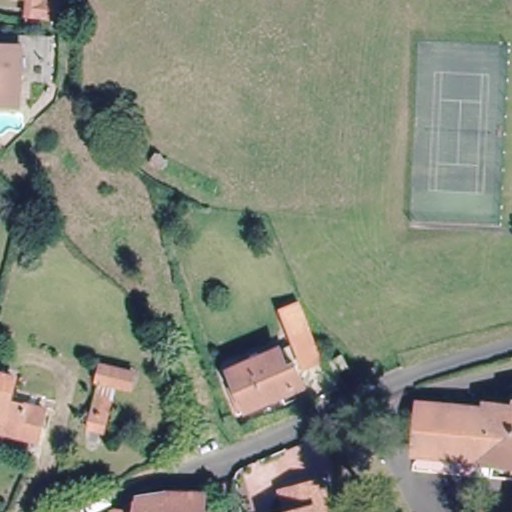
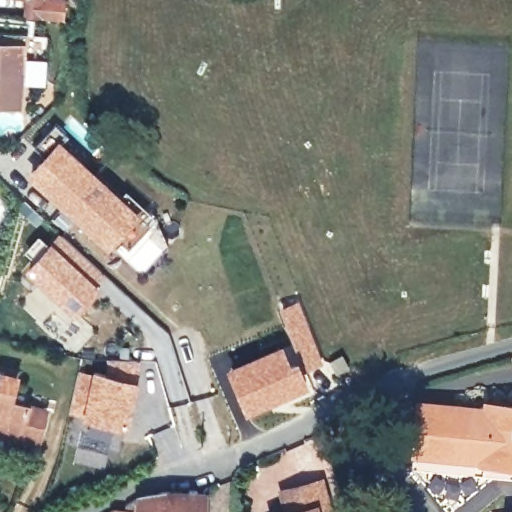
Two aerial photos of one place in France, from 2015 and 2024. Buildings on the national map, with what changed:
unchanged [(72,22),(34,20),(36,1),(7,0),(48,0),(47,1),(73,3),(72,22)]
unchanged [(0,105),(0,45),(36,44),(37,75),(19,75),(19,105),(0,105)]
new [(48,157),(35,145),(54,123),(68,135),(59,145),(93,174),(67,204),(33,174),(48,157)]
new [(93,174),(143,219),(117,247),(67,204),(93,174)]
new [(23,270),(49,242),(59,234),(103,274),(94,283),(99,287),(73,316),(23,270)]
unchanged [(306,368),(291,325),(286,311),(302,305),(306,318),(323,362),(306,368)]
unchanged [(239,382),(235,369),(281,350),(288,368),(296,366),(302,385),(236,411),(228,387),(239,382)]
unchanged [(334,355),(346,351),(350,365),(338,369),(334,355)]
demolished [(103,365),(137,373),(133,388),(118,384),(113,404),(94,399),(103,365)]
new [(81,420),(82,416),(68,413),(78,370),(91,373),(92,370),(138,381),(127,429),(81,420)]
unchanged [(8,408),(44,420),(36,450),(0,440),(0,384),(14,387),(8,408)]
unchanged [(512,406),(512,459),(417,451),(420,403),(512,406)]
demolished [(203,448),(191,451),(188,445),(193,442),(201,440),(203,448)]
unchanged [(287,506),(304,502),(299,480),(338,470),(346,505),(334,507),(335,512),(273,512),(273,510),(287,506)]
unchanged [(124,512),(162,499),(163,498),(207,500),(205,512),(124,512)]

